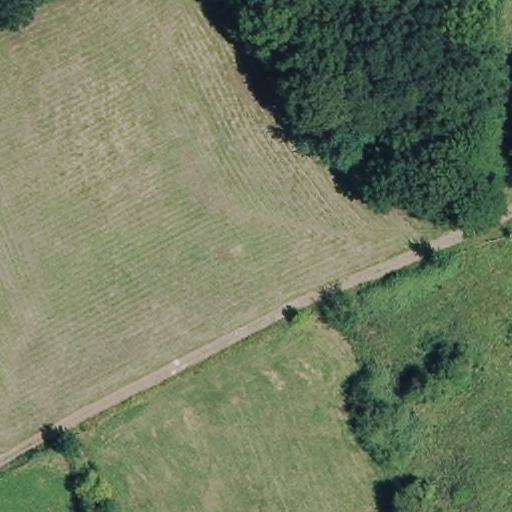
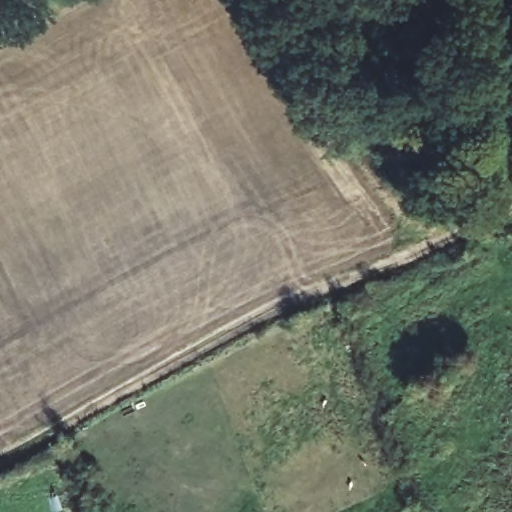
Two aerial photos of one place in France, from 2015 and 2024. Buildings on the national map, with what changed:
[]

